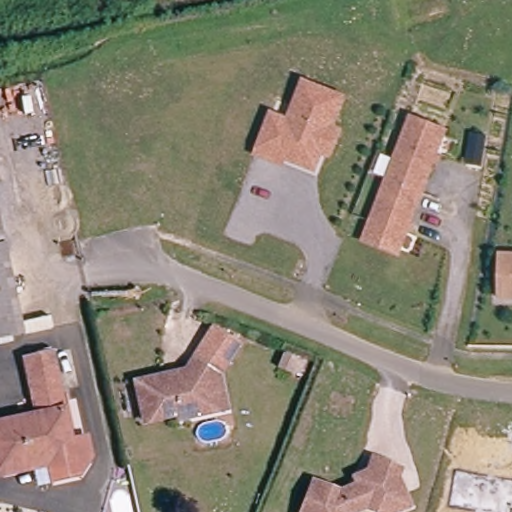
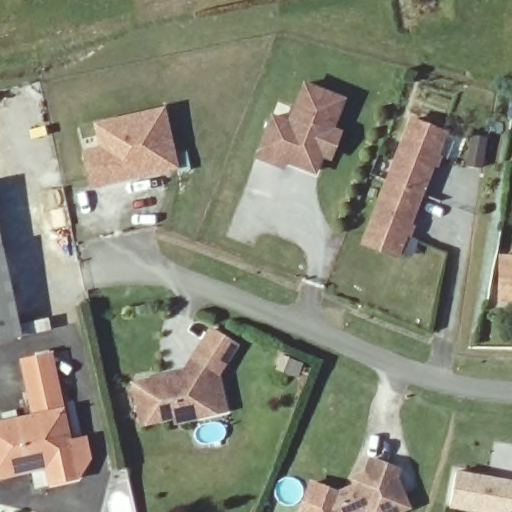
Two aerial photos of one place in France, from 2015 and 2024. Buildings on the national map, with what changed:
unchanged [(273,112),(289,119),(304,82),(346,98),(337,125),(345,129),(334,160),(323,157),(318,172),(289,162),(285,169),(254,157),(273,112)]
new [(166,107),(181,170),(92,189),(82,151),(100,146),(95,122),(166,107)]
unchanged [(399,181),(423,119),(454,132),(432,193),(399,181)]
unchanged [(483,175),(468,173),(472,144),(487,145),(483,175)]
unchanged [(410,255),(378,243),(399,181),(432,193),(410,255)]
unchanged [(0,244),(0,230),(3,243),(0,244)]
unchanged [(19,325),(21,333),(0,338),(0,244),(2,244),(19,325)]
unchanged [(508,308),(508,265),(512,264),(512,308),(508,308)]
unchanged [(209,326),(241,346),(224,372),(190,356),(209,326)]
unchanged [(70,441),(88,438),(91,457),(77,476),(53,480),(50,460),(0,469),(0,417),(36,412),(25,355),(54,351),(70,441)]
unchanged [(214,412),(175,420),(174,414),(141,421),(134,381),(165,375),(169,376),(172,385),(176,385),(193,358),(218,374),(220,388),(224,410),(214,412)]
unchanged [(404,512),(380,512),(373,509),(366,512),(307,512),(319,483),(346,492),(369,483),(379,460),(407,471),(403,478),(410,495),(415,507),(404,512)]
new [(512,480),(512,512),(477,512),(453,508),(459,470),(512,480)]

